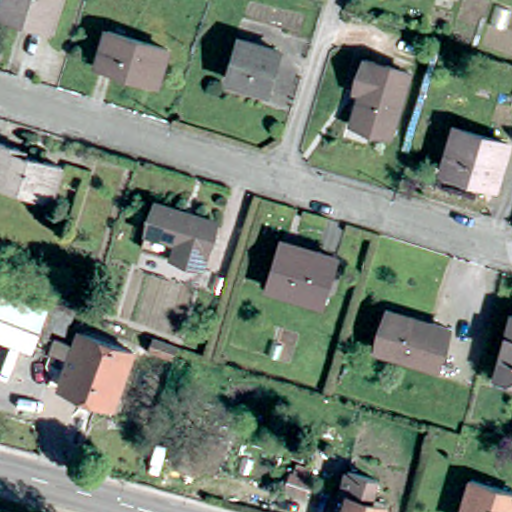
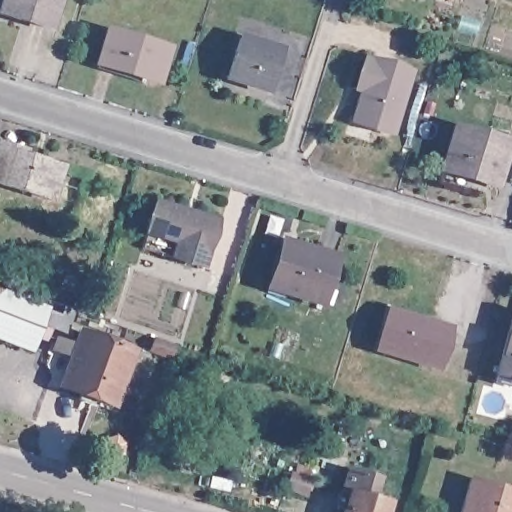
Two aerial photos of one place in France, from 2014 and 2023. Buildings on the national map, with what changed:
unchanged [(5,13),(9,0),(63,0),(55,29),(5,13)]
unchanged [(111,32),(172,51),(161,84),(101,65),(111,32)]
unchanged [(243,39),(282,51),(270,90),(231,78),(243,39)]
unchanged [(355,121),(362,91),(356,89),(365,59),(412,73),(394,133),(355,121)]
unchanged [(450,174),(463,133),(512,148),(512,159),(503,190),(450,174)]
unchanged [(29,160),(70,174),(60,204),(0,186),(0,146),(30,155),(29,160)]
unchanged [(146,248),(160,202),(219,221),(205,265),(146,248)]
unchanged [(330,308),(276,292),(286,258),(289,249),(302,254),(323,260),(325,257),(342,262),(340,274),(346,276),(340,297),(333,295),(330,308)]
unchanged [(82,294),(65,289),(69,276),(87,282),(82,294)]
unchanged [(41,346),(36,357),(0,344),(0,302),(37,315),(40,310),(49,313),(51,308),(67,314),(80,319),(71,342),(57,338),(51,336),(46,348),(41,346)]
unchanged [(391,315),(452,334),(440,371),(380,353),(391,315)]
unchanged [(500,379),(502,372),(512,333),(512,383),(500,379)]
unchanged [(177,360),(154,351),(158,338),(182,346),(177,360)]
unchanged [(117,414),(65,394),(75,365),(56,358),(60,346),(65,349),(72,351),(72,354),(78,357),(83,342),(137,362),(117,414)]
unchanged [(229,448),(222,470),(209,466),(207,471),(175,461),(182,438),(215,447),(216,444),(229,448)]
unchanged [(315,477),(309,492),(289,487),(295,472),(315,477)]
unchanged [(385,512),(344,512),(345,511),(337,508),(345,478),(346,474),(376,483),(371,501),(387,506),(385,512)]
unchanged [(512,494),(512,512),(467,512),(476,483),(512,494)]

